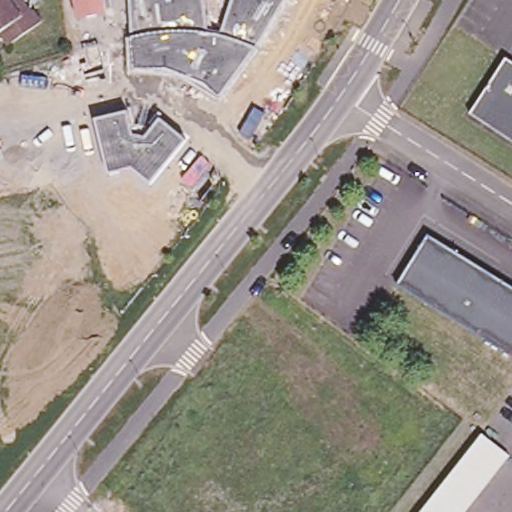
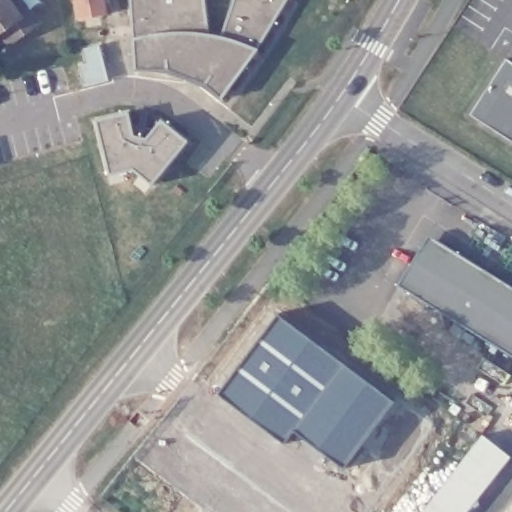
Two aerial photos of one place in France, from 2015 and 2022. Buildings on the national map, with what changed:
unchanged [(0,36),(0,0),(8,0),(12,6),(20,0),(30,16),(35,15),(42,26),(12,44),(5,33),(0,36)]
unchanged [(108,14),(77,21),(72,0),(106,0),(108,14)]
unchanged [(207,32),(220,34),(232,0),(287,0),(258,48),(222,99),(205,84),(165,67),(127,71),(126,37),(130,36),(129,0),(204,0),(207,32)]
new [(87,64),(83,49),(99,45),(108,81),(87,87),(81,66),(87,64)]
unchanged [(470,115),(507,60),(512,64),(512,144),(470,115)]
unchanged [(128,111),(131,134),(146,136),(162,117),(188,140),(151,184),(132,168),(107,173),(95,119),(128,111)]
unchanged [(395,284),(427,233),(512,286),(512,356),(395,284)]
new [(277,313),(394,402),(343,469),(293,432),(283,445),(216,395),(277,313)]
unchanged [(445,481),(482,436),(482,434),(510,456),(509,456),(487,484),(468,508),(465,512),(421,512),(427,505),(445,481)]

